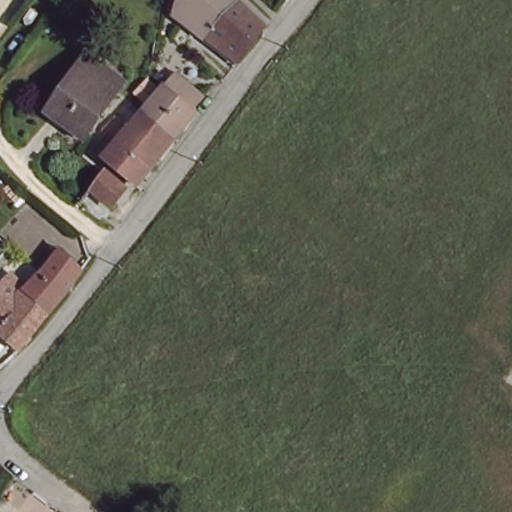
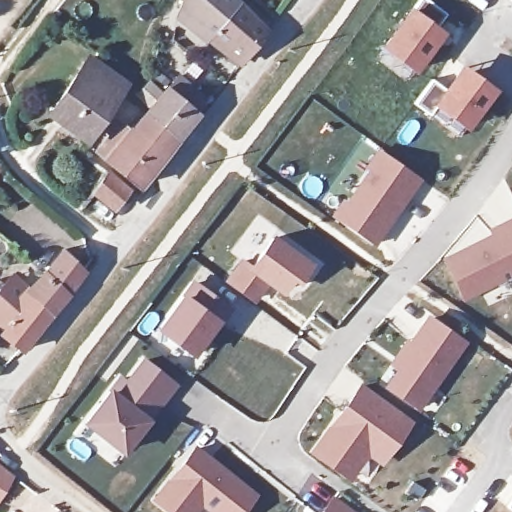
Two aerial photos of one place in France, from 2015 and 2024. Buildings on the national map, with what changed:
unchanged [(272,29),(230,74),(167,16),(178,0),(241,0),(272,29)]
new [(449,16),(438,31),(429,25),(444,36),(439,42),(417,71),(387,48),(425,0),(428,0),(449,16)]
unchanged [(80,145),(45,119),(78,77),(85,67),(120,95),(80,145)]
unchanged [(180,138),(142,187),(94,145),(107,130),(119,135),(143,106),(164,82),(174,69),(196,88),(185,100),(198,115),(180,138)]
new [(461,77),(466,70),(481,80),(496,92),(469,127),(440,106),(433,116),(417,105),(441,73),(455,85),(461,77)]
new [(420,179),(401,207),(396,204),(392,210),(396,213),(374,244),(336,217),(346,202),(349,204),(374,170),(370,167),(381,152),(420,179)]
unchanged [(107,203),(88,189),(106,166),(123,182),(107,203)]
new [(502,234),(500,230),(512,224),(512,275),(465,299),(446,263),(502,234)]
new [(233,283),(247,263),(255,269),(276,240),(312,267),(301,282),(296,278),(285,293),(271,283),(258,301),(233,283)]
unchanged [(5,277),(7,280),(17,289),(17,291),(35,269),(52,250),(75,266),(62,288),(60,290),(39,320),(33,328),(28,336),(17,351),(0,337),(0,282),(5,277)]
new [(196,286),(231,312),(220,326),(217,324),(194,356),(162,332),(196,286)]
new [(402,369),(394,363),(409,343),(413,346),(432,319),(466,343),(420,408),(390,386),(402,369)]
new [(112,443),(88,425),(122,381),(128,386),(145,363),(175,386),(134,439),(124,452),(112,443)]
new [(361,388),(410,424),(382,463),(369,453),(350,479),(314,453),(361,388)]
new [(256,498),(246,512),(213,512),(204,504),(198,512),(169,512),(157,502),(198,452),(256,498)]
new [(16,475),(0,501),(0,465),(16,475)]
new [(328,512),(334,502),(347,512),(328,512)]
new [(512,512),(507,508),(512,502),(512,512)]

